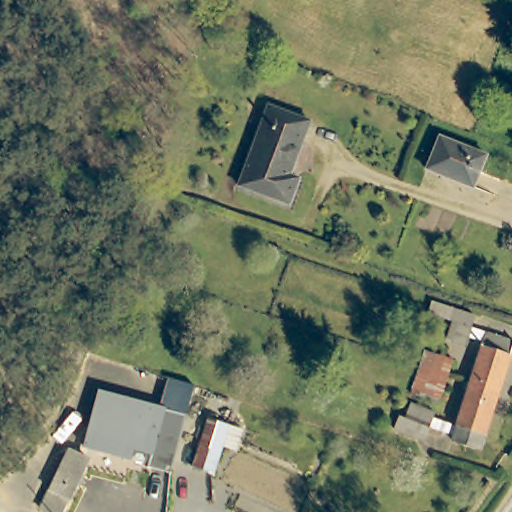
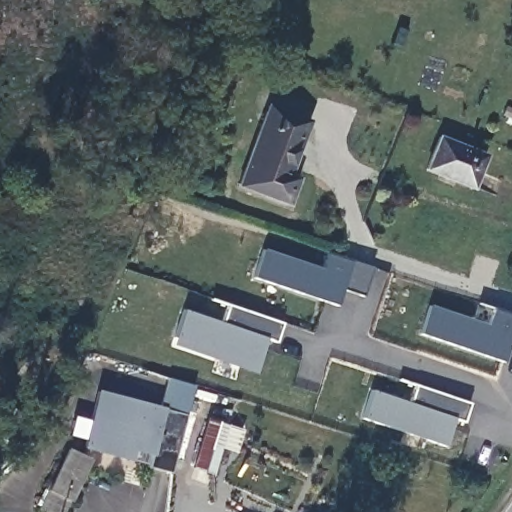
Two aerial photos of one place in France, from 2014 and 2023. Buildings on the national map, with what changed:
unchanged [(264,103),(306,120),(290,170),(297,173),(288,201),(235,182),(264,103)]
unchanged [(80,154),(85,135),(98,139),(92,158),(80,154)]
unchanged [(477,188),(431,171),(443,138),(490,155),(477,188)]
new [(362,294),(342,287),(336,305),(254,278),(263,247),(323,267),(330,253),(372,267),(362,294)]
new [(275,341),(265,337),(252,373),(170,344),(184,309),(221,321),(227,305),(283,323),(275,341)]
new [(503,362),(420,334),(430,305),(490,325),(496,307),(512,313),(512,348),(510,347),(503,362)]
demolished [(448,325),(444,324),(449,311),(470,319),(466,331),(448,325)]
demolished [(484,338),(512,348),(512,350),(492,405),(464,395),(481,345),(484,338)]
demolished [(410,384),(415,372),(422,350),(453,360),(445,382),(440,395),(410,384)]
unchanged [(97,389),(160,404),(167,378),(192,385),(184,414),(169,473),(147,466),(151,455),(132,450),(129,460),(82,446),(97,389)]
new [(464,421),(456,418),(445,446),(361,418),(370,389),(412,403),(419,384),(470,402),(464,421)]
demolished [(464,395),(492,405),(476,452),(448,442),(450,438),(452,430),(464,395)]
demolished [(415,444),(386,432),(391,417),(398,419),(422,428),(415,444)]
unchanged [(208,418),(242,428),(236,452),(222,448),(214,475),(190,465),(208,418)]
unchanged [(38,506),(64,450),(86,462),(63,512),(36,512),(35,511),(38,506)]

